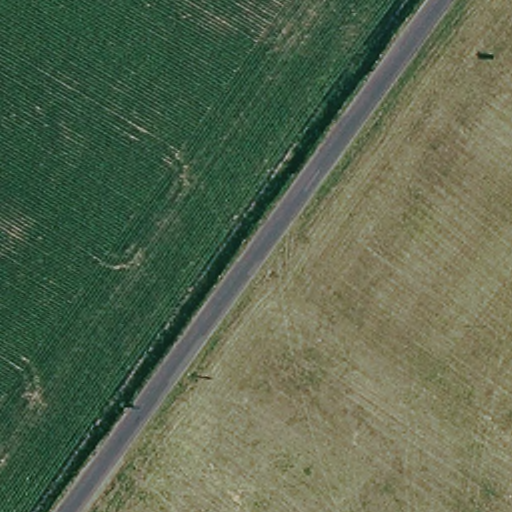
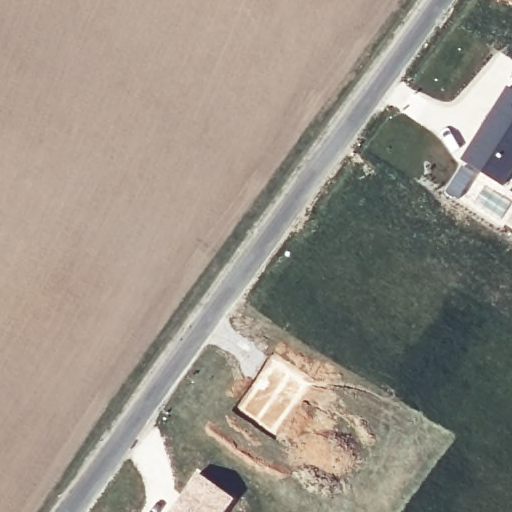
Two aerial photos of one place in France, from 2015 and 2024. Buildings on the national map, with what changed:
new [(512,89),(512,173),(503,187),(460,159),(507,85),(512,89)]
new [(197,471),(235,499),(225,512),(168,512),(197,471)]

